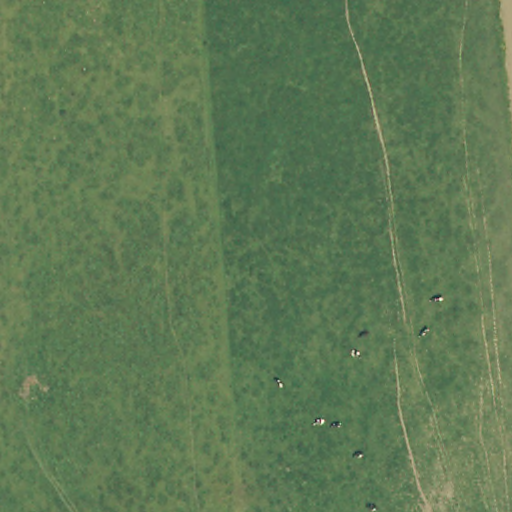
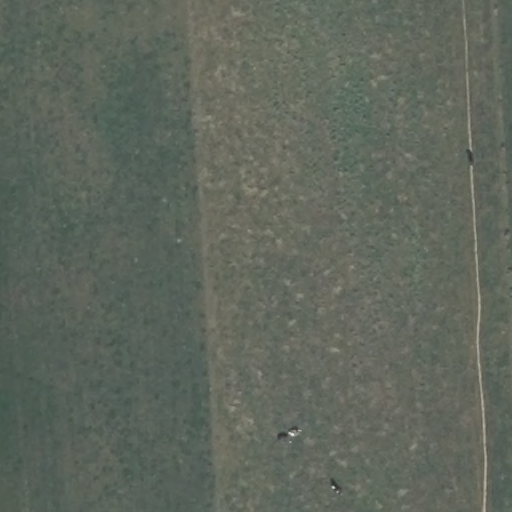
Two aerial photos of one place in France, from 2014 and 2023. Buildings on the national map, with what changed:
[]

